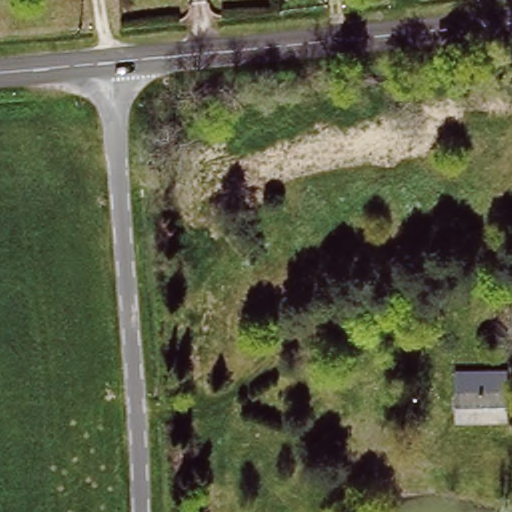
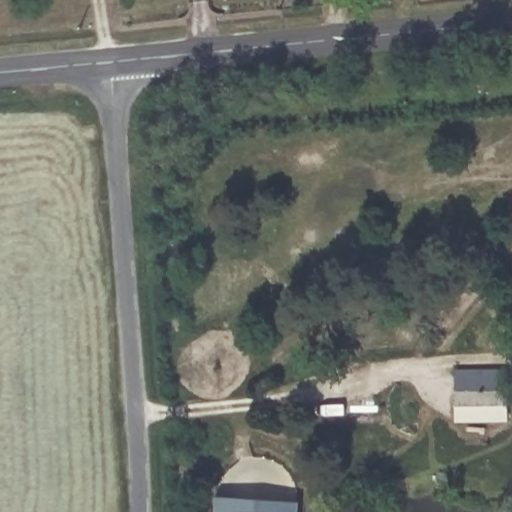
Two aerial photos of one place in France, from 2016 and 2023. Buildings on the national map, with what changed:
unchanged [(508,420),(457,421),(457,379),(508,379),(508,420)]
new [(215,499),(298,504),(298,512),(215,512),(215,499)]

